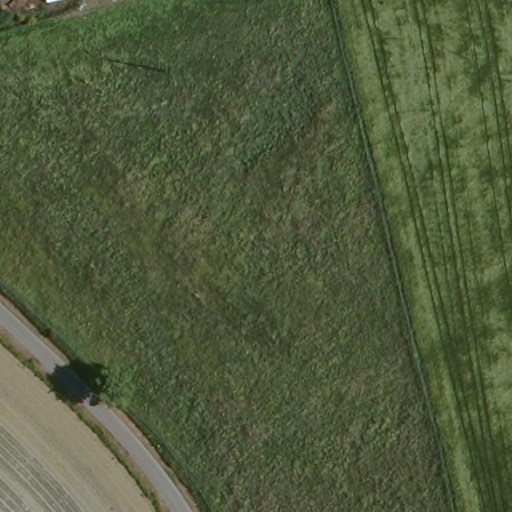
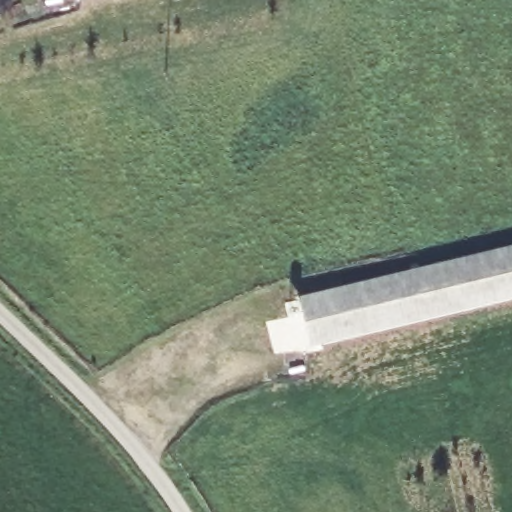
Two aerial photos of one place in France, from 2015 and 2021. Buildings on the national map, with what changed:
new [(512,242),(512,297),(313,353),(298,303),(512,242)]

